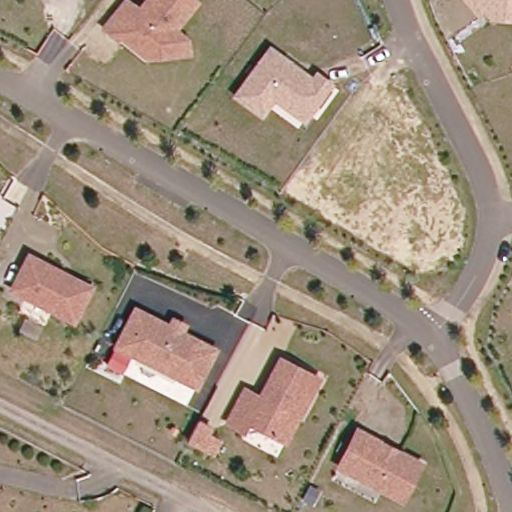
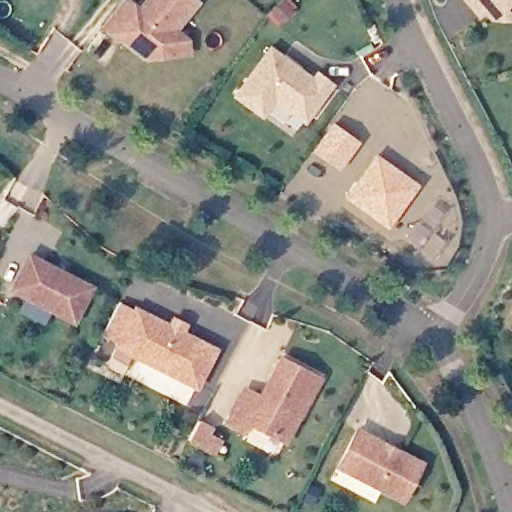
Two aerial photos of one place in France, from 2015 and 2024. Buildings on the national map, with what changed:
unchanged [(146,57),(128,42),(127,36),(121,32),(117,37),(103,27),(126,0),(127,0),(138,10),(146,0),(194,0),(196,2),(174,29),(186,39),(188,52),(174,54),(146,57)]
unchanged [(461,0),(512,0),(512,24),(490,22),(484,15),(477,20),(472,14),(461,0)]
unchanged [(291,111),(273,97),(261,114),(235,95),(269,48),(312,79),(316,73),(331,84),(311,110),(304,120),(291,111)]
new [(311,153),(332,124),(358,144),(338,172),(311,153)]
new [(343,198),(374,155),(418,186),(388,228),(343,198)]
unchanged [(90,287),(72,322),(10,290),(28,256),(90,287)]
unchanged [(190,392),(111,351),(130,313),(164,331),(168,323),(180,330),(176,337),(210,355),(190,392)]
unchanged [(280,439),(247,422),(242,431),(227,422),(245,390),(259,397),(280,358),(318,378),(299,413),(284,442),(280,439)]
unchanged [(212,452),(187,439),(197,420),(197,421),(209,427),(206,433),(218,440),(212,452)]
unchanged [(396,504),(332,471),(351,435),(378,448),(390,455),(415,468),(396,504)]

